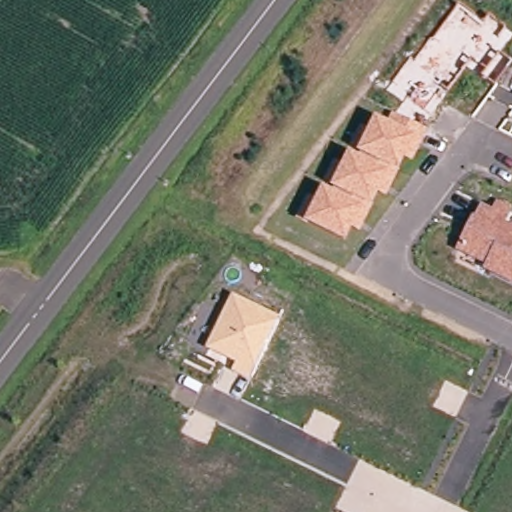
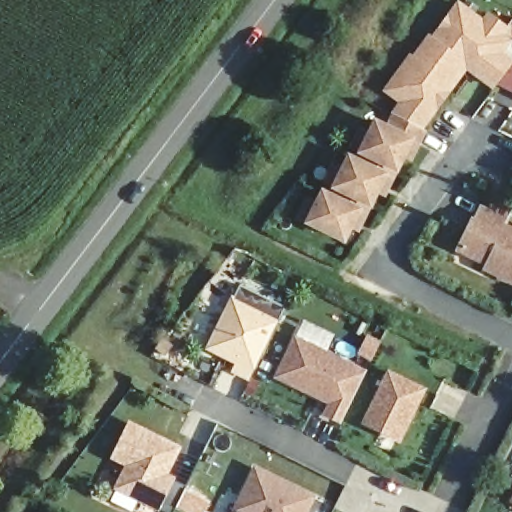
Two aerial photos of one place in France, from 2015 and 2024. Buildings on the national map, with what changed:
new [(484,22),(489,16),(507,30),(503,35),(510,41),(500,55),(512,63),(495,87),(466,67),(421,129),(396,116),(392,113),(410,95),(392,83),(412,57),(416,61),(457,5),(484,22)]
unchanged [(390,127),(396,116),(425,131),(412,160),(406,158),(399,174),(387,198),(378,195),(372,209),(360,233),(352,231),(346,244),(303,226),(320,190),(329,193),(349,153),(356,156),(374,120),(390,127)]
unchanged [(488,263),(458,251),(472,217),(476,219),(483,205),(494,211),(499,201),(512,207),(512,215),(507,225),(512,228),(512,286),(484,270),(488,263)]
unchanged [(231,296),(279,318),(254,368),(248,380),(230,372),(234,360),(205,348),(231,296)]
new [(366,370),(338,424),(322,417),(328,404),(274,378),(296,335),(366,370)]
new [(427,389),(401,443),(361,425),(389,369),(427,389)]
new [(124,467),(110,460),(129,422),(183,448),(170,476),(176,479),(175,481),(187,486),(174,512),(165,512),(161,510),(160,512),(157,512),(114,490),(124,467)]
new [(255,466),(316,497),(309,512),(232,512),(255,466)]
new [(512,499),(512,504),(510,503),(512,499)]

